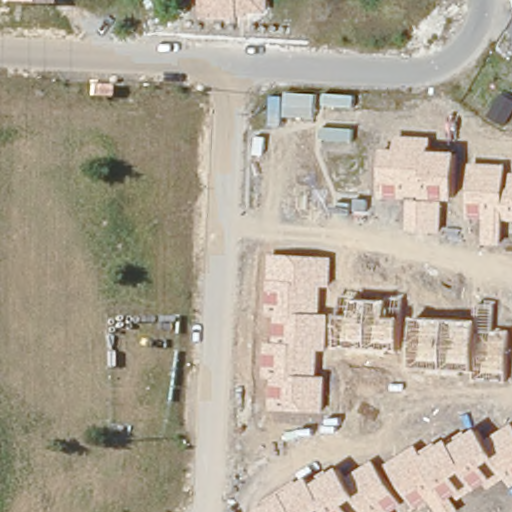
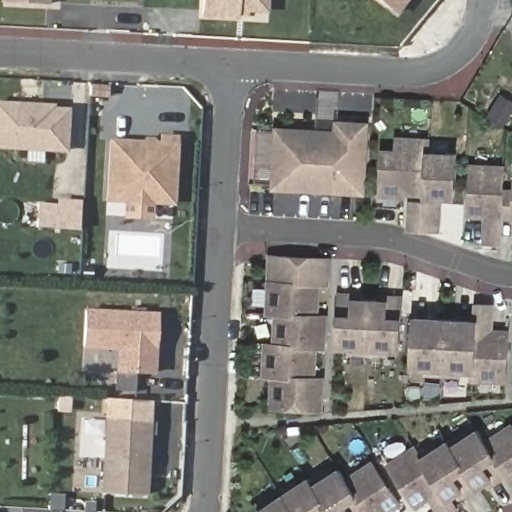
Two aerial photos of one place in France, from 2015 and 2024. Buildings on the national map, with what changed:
unchanged [(51,4),(2,2),(3,0),(51,0),(51,4)]
unchanged [(270,13),(238,12),(237,19),(202,17),(202,0),(270,0),(270,13)]
new [(397,15),(379,0),(408,0),(397,15)]
new [(34,106),(57,107),(57,110),(72,111),(69,152),(0,148),(0,104),(26,106),(34,106)]
new [(367,195),(272,190),(276,127),(336,129),(336,120),(371,121),(367,195)]
unchanged [(457,200),(444,199),(442,235),(407,232),(410,201),(379,198),(382,149),(396,150),(397,135),(434,137),(433,152),(461,152),(457,200)]
new [(175,203),(108,200),(111,141),(161,143),(162,136),(178,137),(175,203)]
unchanged [(505,219),(503,247),(483,246),(485,219),(467,217),(472,162),(506,165),(506,174),(512,174),(512,219),(505,219)]
new [(43,204),(63,205),(64,202),(83,203),(82,232),(42,229),(43,204)]
unchanged [(331,287),(321,287),(320,312),(329,313),(327,350),(316,350),(316,376),(325,377),(322,412),(268,410),(271,380),(262,380),(265,342),(272,342),(275,318),(266,317),(271,254),(333,257),(331,287)]
unchanged [(402,352),(390,351),(390,357),(349,356),(348,347),(337,347),(337,314),(343,315),(342,295),(405,297),(404,317),(402,352)]
unchanged [(507,383),(476,381),(476,372),(465,371),(464,378),(425,376),(426,368),(411,368),(413,317),(476,320),(477,305),(496,305),(493,330),(510,331),(507,383)]
new [(157,373),(116,373),(117,350),(84,349),(86,308),(159,312),(157,373)]
new [(149,495),(101,494),(105,418),(152,420),(149,495)]
unchanged [(506,479),(490,491),(485,483),(456,503),(461,512),(460,512),(437,512),(429,501),(416,509),(386,465),(417,445),(425,455),(450,440),(453,445),(479,427),(487,439),(512,424),(512,487),(506,479)]
unchanged [(313,483),(339,467),(347,477),(373,460),(404,506),(395,512),(255,512),(310,477),(313,483)]

